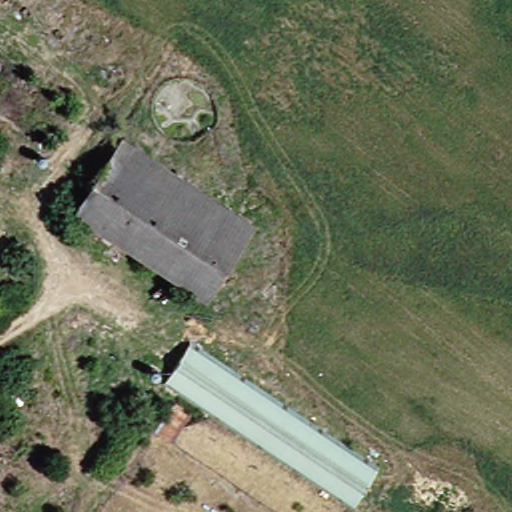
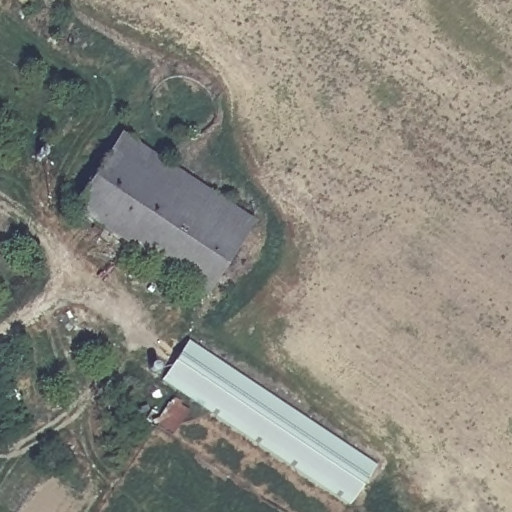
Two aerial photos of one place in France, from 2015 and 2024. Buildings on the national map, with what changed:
unchanged [(244,226),(217,266),(193,299),(68,207),(123,137),(244,226)]
unchanged [(186,338),(368,470),(338,509),(156,376),(170,358),(186,338)]

